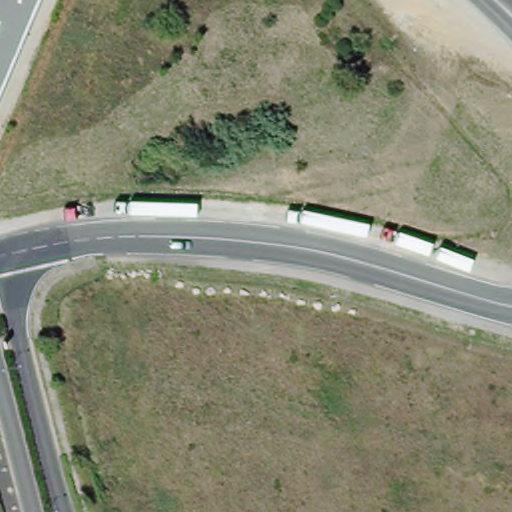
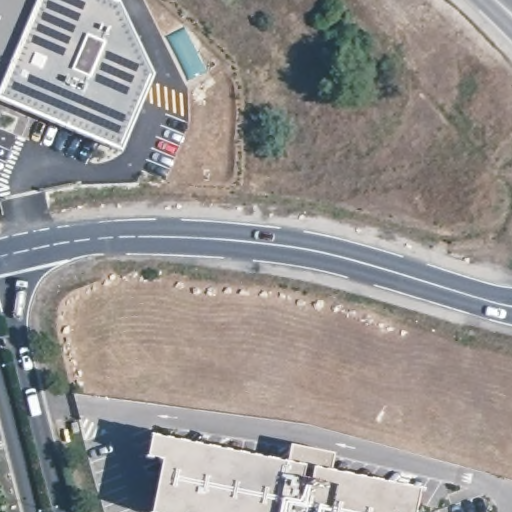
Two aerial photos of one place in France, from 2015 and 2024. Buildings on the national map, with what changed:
unchanged [(37,0),(0,89),(0,0),(37,0)]
new [(121,151),(0,102),(0,89),(36,0),(111,0),(120,4),(153,79),(121,151)]
new [(151,436),(419,490),(415,512),(384,512),(387,494),(194,455),(182,512),(151,512),(161,461),(146,459),(151,436)]
new [(194,455),(387,494),(384,512),(182,512),(194,455)]

